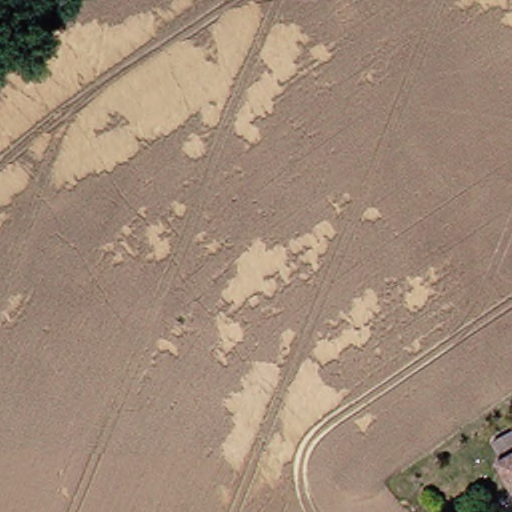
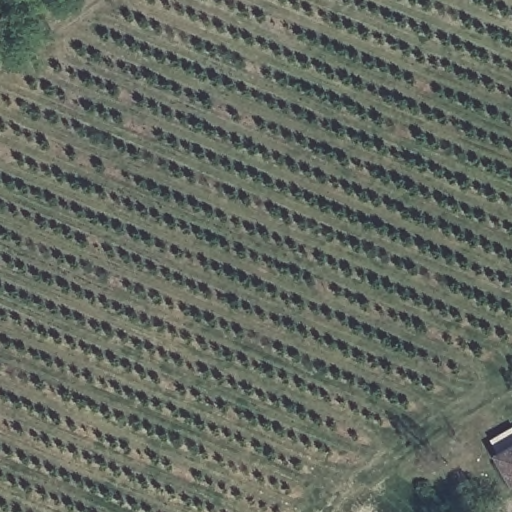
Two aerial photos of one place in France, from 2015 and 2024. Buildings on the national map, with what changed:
unchanged [(510,498),(489,456),(512,444),(512,497),(510,498)]

